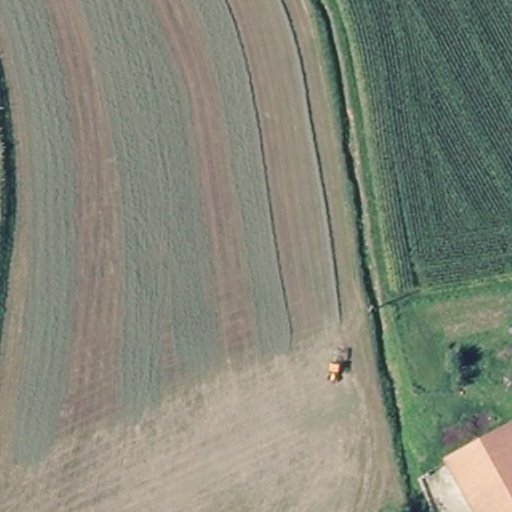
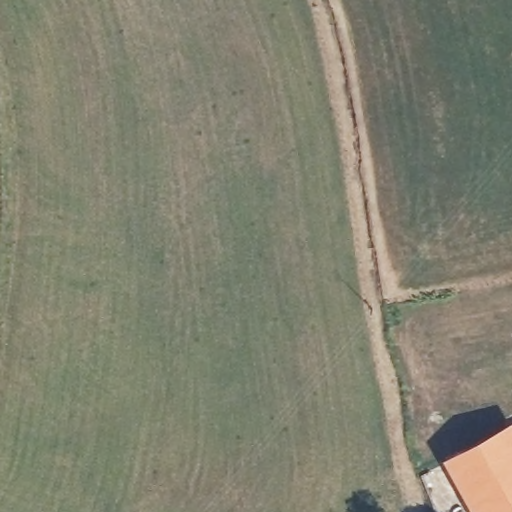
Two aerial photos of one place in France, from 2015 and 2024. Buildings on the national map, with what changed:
unchanged [(451,460),(512,430),(512,512),(479,512),(451,460)]

